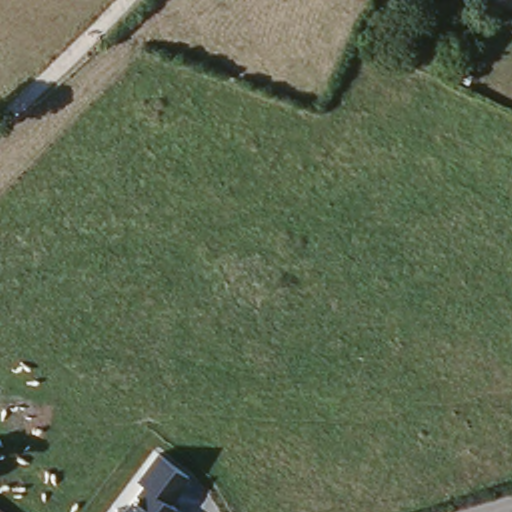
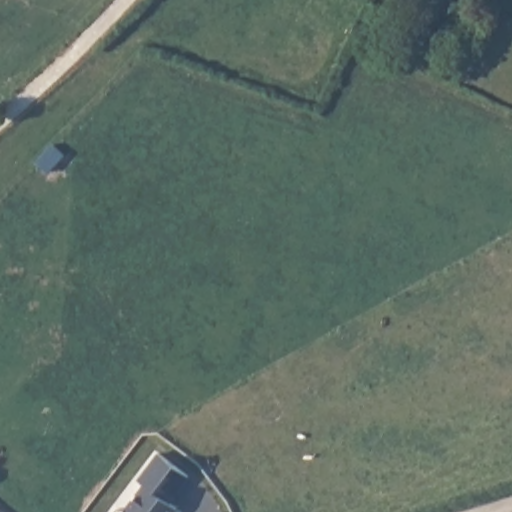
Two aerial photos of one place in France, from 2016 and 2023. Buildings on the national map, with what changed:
unchanged [(173,508),(178,511),(178,512),(119,512),(121,510),(127,510),(146,485),(141,481),(160,456),(191,479),(173,508)]

